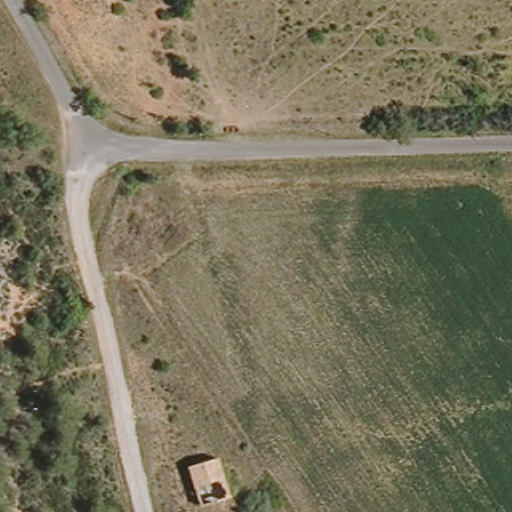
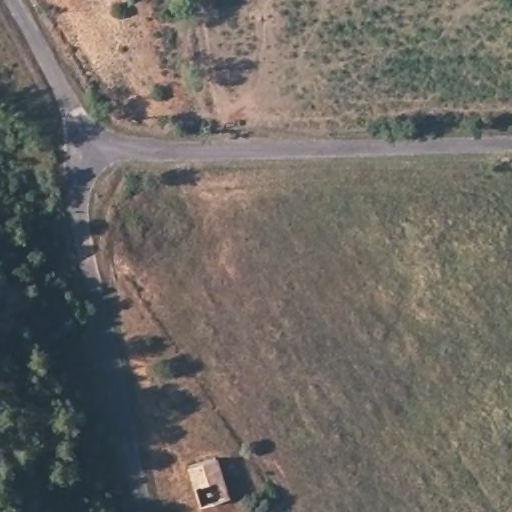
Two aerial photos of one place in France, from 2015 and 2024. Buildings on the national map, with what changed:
unchanged [(218,462),(225,484),(200,492),(192,470),(218,462)]

